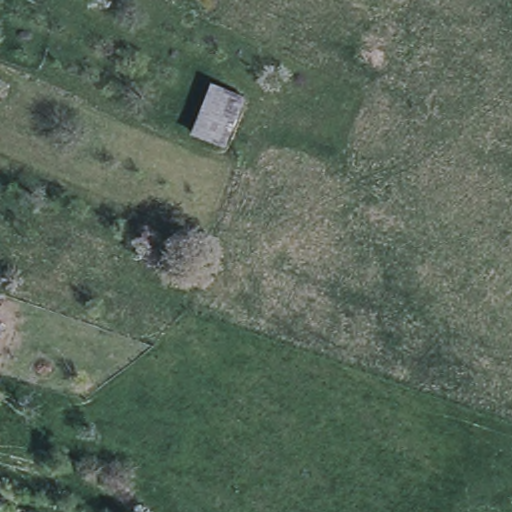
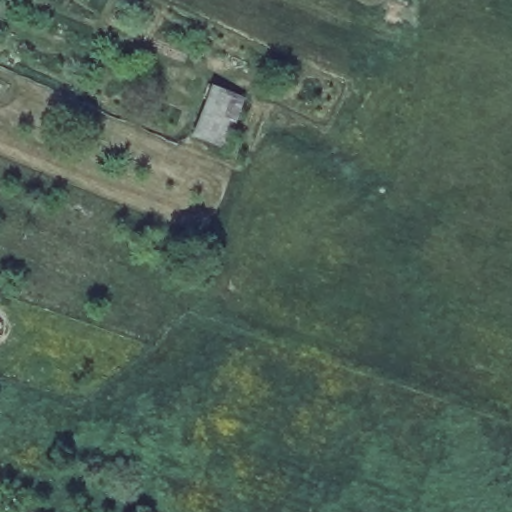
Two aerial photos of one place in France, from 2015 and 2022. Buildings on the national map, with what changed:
unchanged [(244,98),(226,144),(196,133),(213,86),(244,98)]

